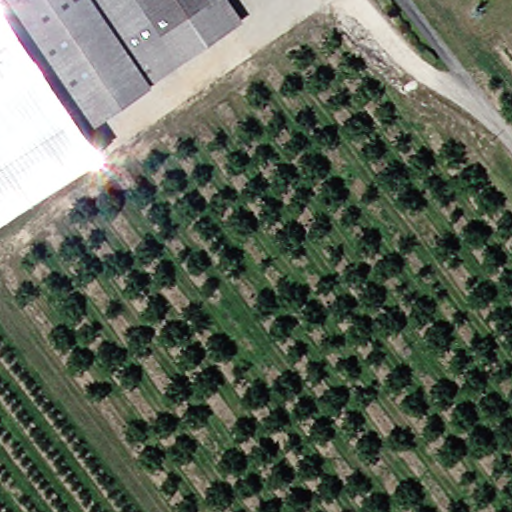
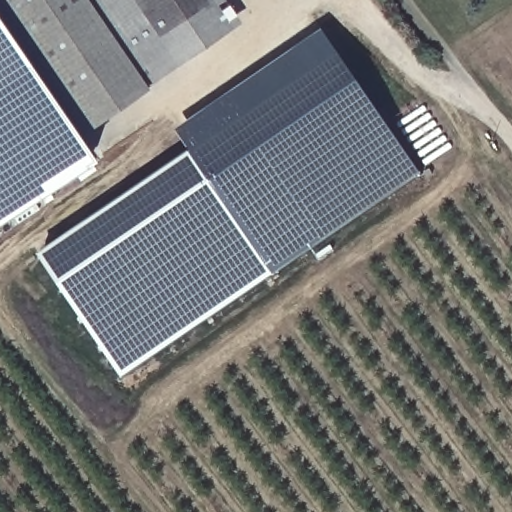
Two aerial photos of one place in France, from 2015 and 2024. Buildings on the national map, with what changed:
unchanged [(150,85),(90,125),(5,0),(214,0),(233,27),(150,85)]
new [(176,132),(321,32),(340,62),(194,157),(190,153),(176,132)]
unchanged [(86,165),(0,224),(0,39),(70,141),(86,165)]
new [(423,180),(275,278),(194,157),(340,62),(423,180)]
new [(38,256),(190,153),(194,157),(273,276),(122,378),(38,256)]

